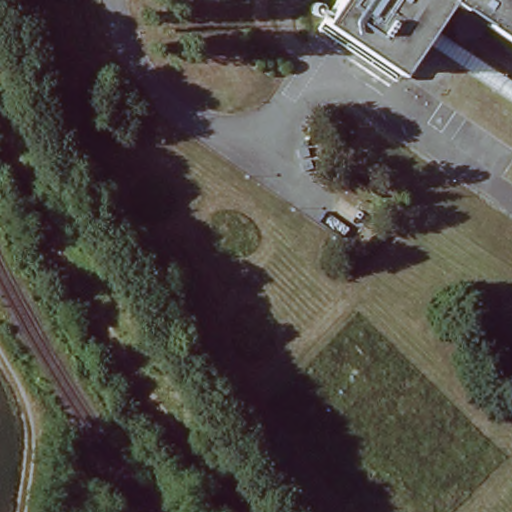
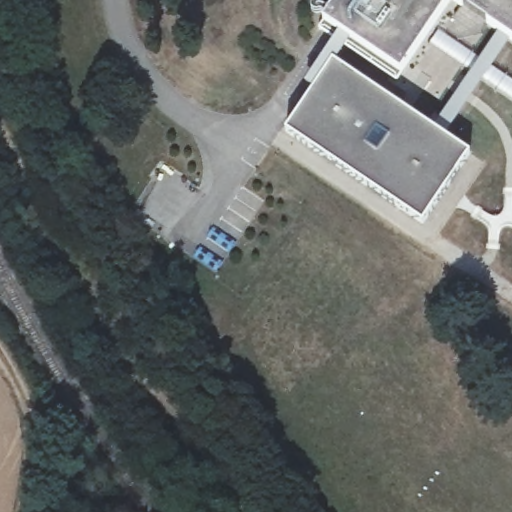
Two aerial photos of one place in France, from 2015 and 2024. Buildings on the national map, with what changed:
unchanged [(310,16),(321,0),(432,0),(386,69),(310,16)]
unchanged [(445,0),(512,0),(512,45),(473,19),(464,33),(438,16),(448,1),(445,0)]
new [(348,43),(336,64),(471,154),(423,225),(285,131),(315,89),(305,84),(338,35),(348,43)]
demolished [(465,141),(490,104),(512,119),(512,172),(465,141)]

